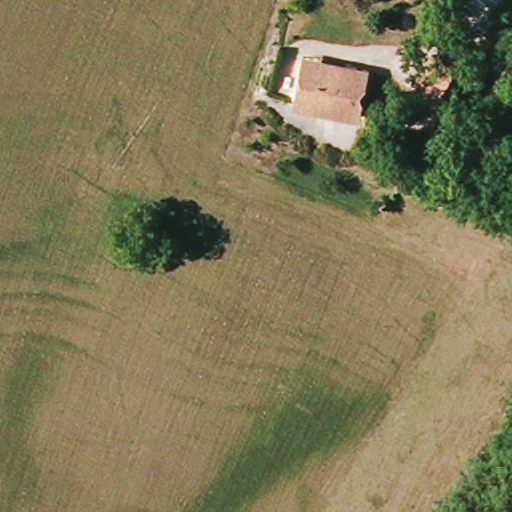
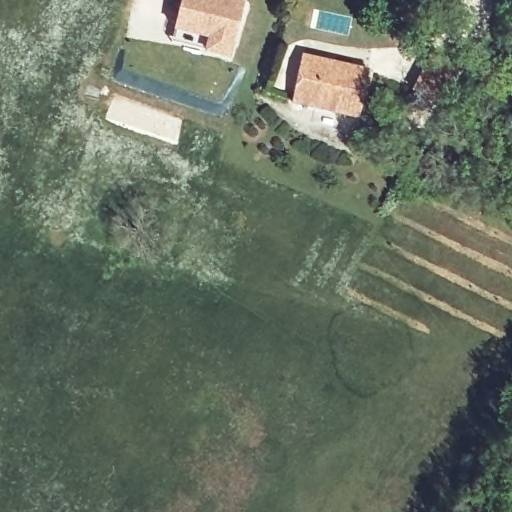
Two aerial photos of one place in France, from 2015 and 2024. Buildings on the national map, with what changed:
new [(173,30),(181,0),(212,0),(243,8),(229,60),(204,54),(204,53),(170,44),(174,30),(173,30)]
unchanged [(435,103),(411,89),(432,53),(456,65),(435,103)]
unchanged [(305,63),(346,73),(348,64),(368,70),(356,116),(294,100),(305,63)]

